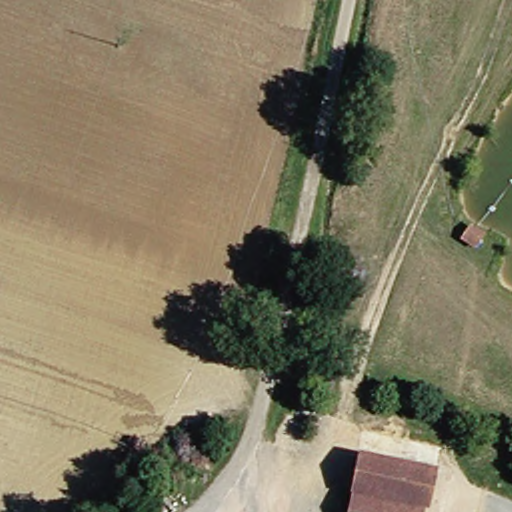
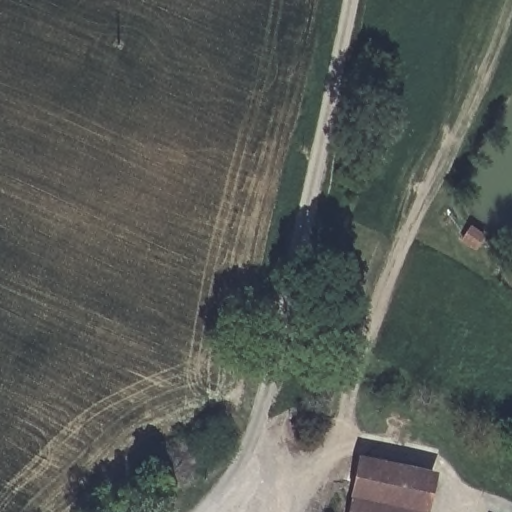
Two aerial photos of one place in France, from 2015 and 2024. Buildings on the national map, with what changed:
unchanged [(488,238),(478,250),(465,238),(473,224),(488,238)]
unchanged [(357,495),(365,457),(439,472),(430,512),(354,512),(357,495)]

